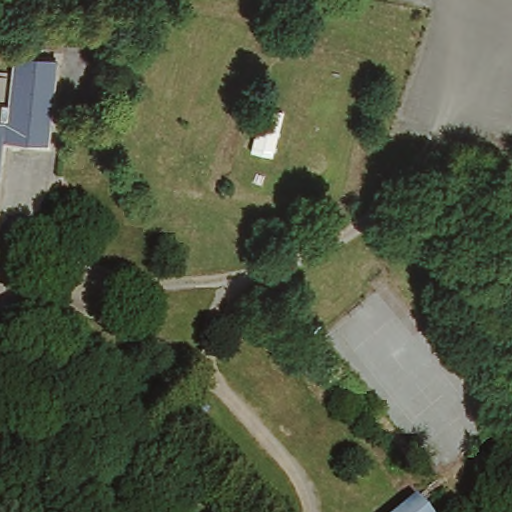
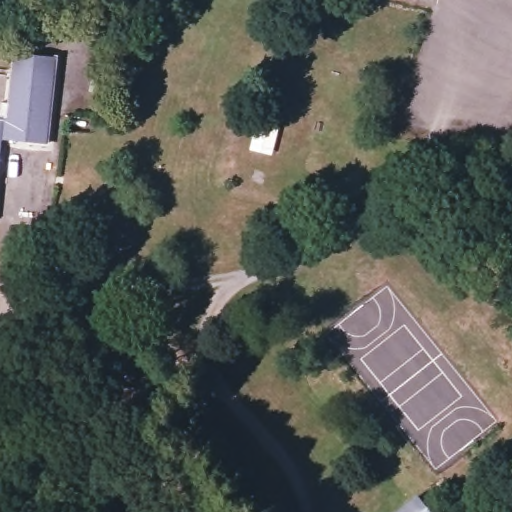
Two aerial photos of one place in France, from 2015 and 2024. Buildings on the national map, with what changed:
unchanged [(0,133),(0,71),(3,71),(5,45),(47,48),(40,135),(0,133)]
unchanged [(250,149),(261,105),(282,110),(271,155),(250,149)]
unchanged [(402,493),(419,512),(380,512),(402,493)]

